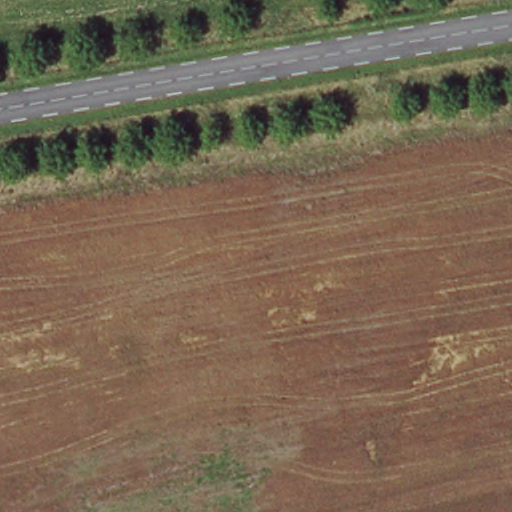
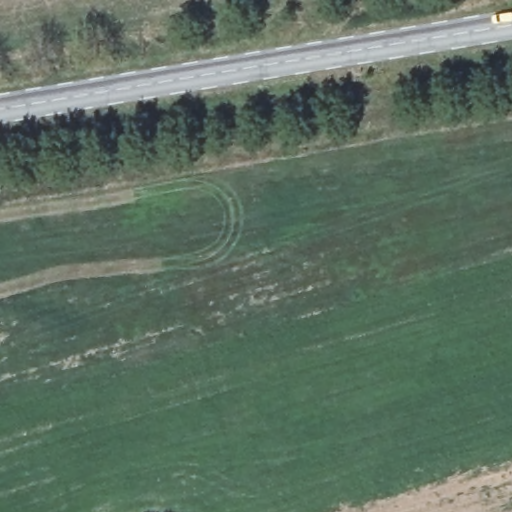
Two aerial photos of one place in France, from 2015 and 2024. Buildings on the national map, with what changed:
[]

